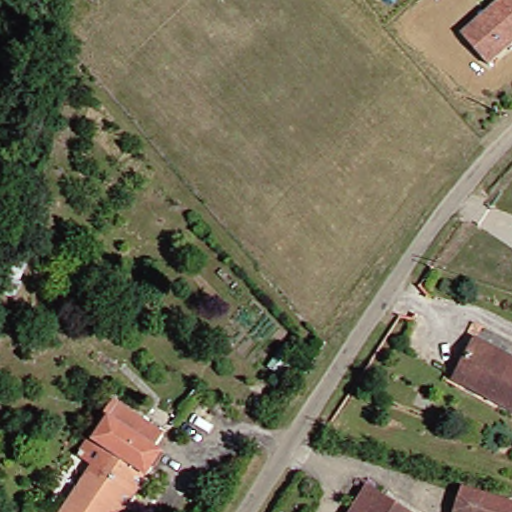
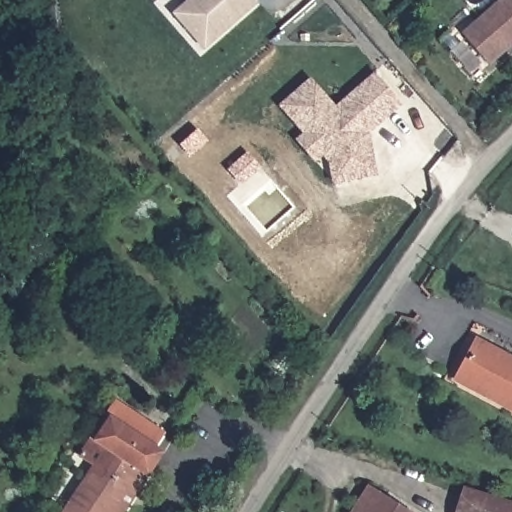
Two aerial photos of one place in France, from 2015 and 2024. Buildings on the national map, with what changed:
new [(202,47),(174,13),(190,0),(253,0),(255,3),(202,47)]
unchanged [(460,32),(498,0),(512,0),(512,44),(488,64),(460,32)]
new [(282,106),(311,81),(335,110),(375,76),(400,106),(368,134),(371,150),(375,176),(345,182),(335,184),(297,140),(305,134),(282,106)]
unchanged [(502,394),(463,374),(480,343),(512,360),(512,407),(500,401),(502,394)]
unchanged [(115,510),(114,512),(69,512),(95,462),(80,453),(90,436),(111,397),(160,424),(153,439),(164,445),(149,469),(127,512),(117,512),(115,510)]
unchanged [(372,486),(417,512),(354,512),(372,486)]
unchanged [(512,499),(512,512),(471,512),(478,489),(512,499)]

